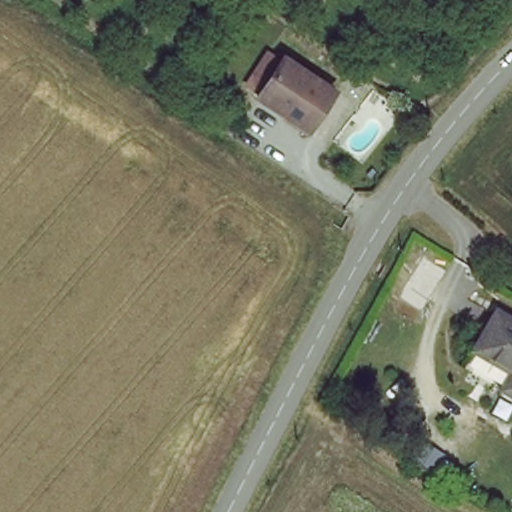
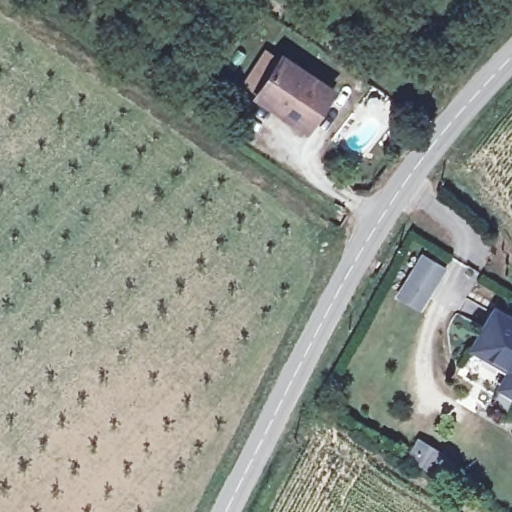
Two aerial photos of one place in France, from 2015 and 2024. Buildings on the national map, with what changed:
unchanged [(281,65),(327,93),(305,130),(259,100),(281,65)]
new [(421,311),(395,295),(421,253),(447,268),(421,311)]
unchanged [(472,351),(494,315),(512,325),(512,401),(507,398),(495,391),(507,371),(472,351)]

